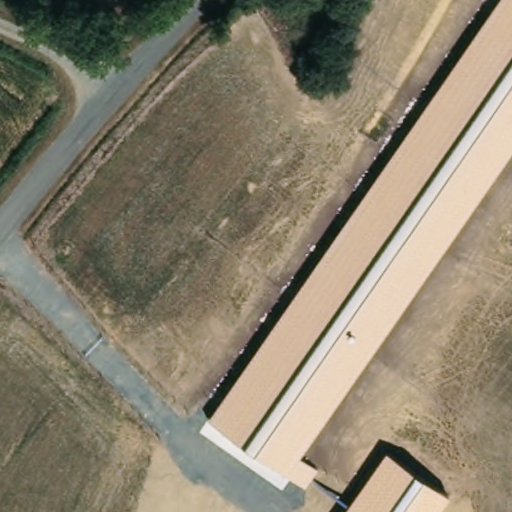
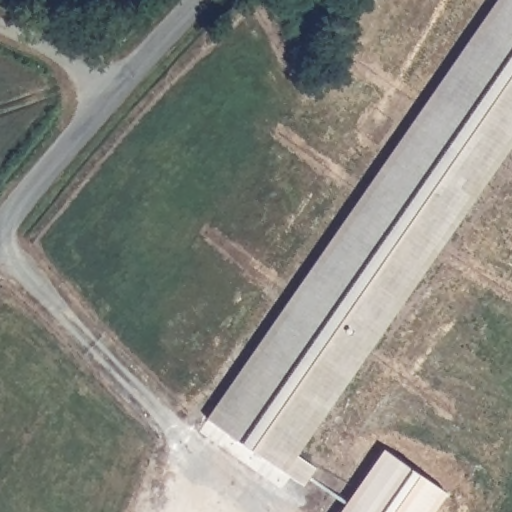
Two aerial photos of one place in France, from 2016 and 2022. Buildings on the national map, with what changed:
unchanged [(317,466),(305,484),(207,419),(497,0),(512,0),(512,145),(299,454),(317,466)]
unchanged [(447,493),(434,512),(342,512),(384,451),(447,493)]

